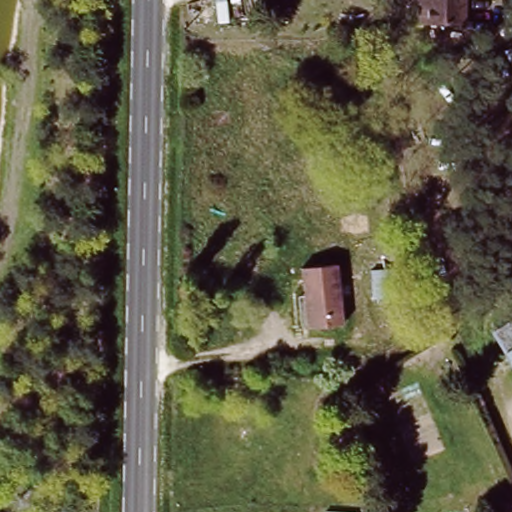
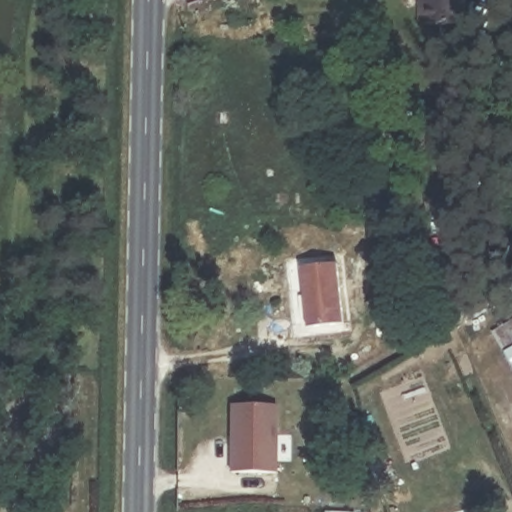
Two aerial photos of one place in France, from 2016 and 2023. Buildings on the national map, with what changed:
unchanged [(462,32),(417,32),(417,13),(425,12),(425,0),(461,0),(462,32)]
unchanged [(332,265),(343,323),(308,330),(297,271),(332,265)]
unchanged [(487,332),(512,318),(512,344),(500,351),(487,332)]
unchanged [(512,344),(512,372),(500,351),(512,344)]
new [(230,404),(280,406),(280,473),(232,472),(230,404)]

